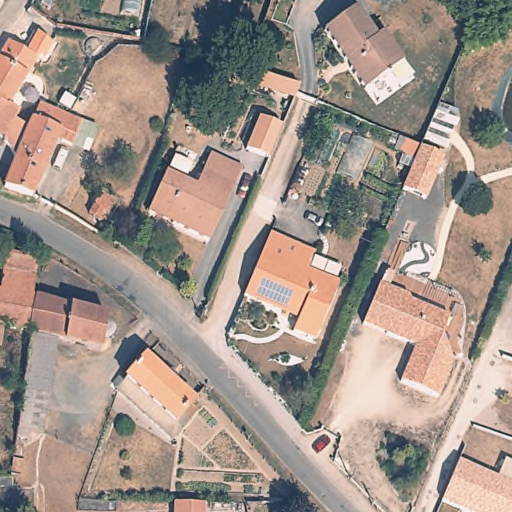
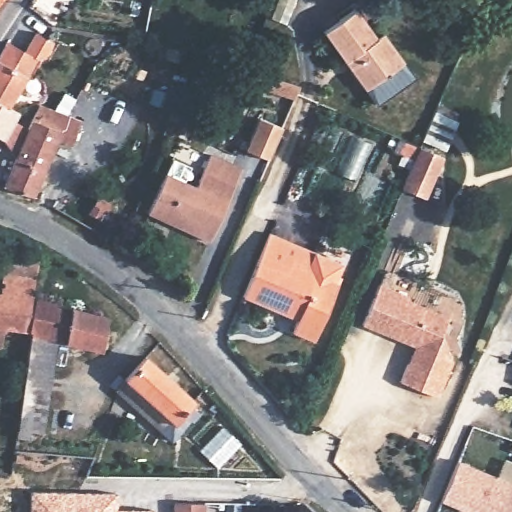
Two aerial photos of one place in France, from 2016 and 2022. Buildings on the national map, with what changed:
unchanged [(387,75),(366,91),(360,84),(322,32),(352,9),(376,38),(380,37),(382,35),(397,52),(405,63),(387,75)]
unchanged [(0,105),(0,65),(11,48),(36,63),(19,96),(11,110),(0,105)]
unchanged [(292,96),(292,97),(284,95),(247,82),(251,70),(288,83),(297,86),(292,96)]
unchanged [(11,110),(16,113),(0,143),(0,105),(11,110)]
unchanged [(56,141),(26,200),(2,189),(36,124),(46,107),(71,118),(86,125),(71,150),(56,141)]
unchanged [(21,116),(36,124),(2,189),(0,189),(0,143),(16,113),(21,116)]
unchanged [(439,158),(422,199),(398,189),(400,185),(416,148),(439,158)]
unchanged [(172,227),(174,223),(151,214),(167,178),(189,187),(197,190),(205,172),(211,157),(242,171),(236,186),(212,243),(172,227)]
unchanged [(78,223),(95,192),(108,198),(102,211),(99,210),(89,229),(78,223)]
unchanged [(308,272),(341,285),(316,344),(295,335),(304,314),(287,307),(282,314),(246,299),(272,235),(317,253),(308,272)]
unchanged [(1,254),(38,260),(32,297),(27,332),(4,330),(1,347),(0,347),(0,269),(1,254)]
unchanged [(386,280),(416,292),(414,295),(456,313),(447,331),(458,358),(444,393),(407,378),(420,351),(422,352),(424,349),(422,343),(368,319),(386,280)]
unchanged [(32,297),(107,315),(100,350),(57,340),(46,433),(17,429),(27,332),(32,297)]
unchanged [(183,401),(172,412),(128,374),(147,353),(193,389),(191,393),(197,398),(191,407),(183,401)]
unchanged [(193,409),(174,431),(118,385),(128,374),(172,412),(183,401),(191,407),(193,409)]
unchanged [(512,479),(512,486),(506,501),(501,512),(478,512),(444,498),(461,458),(512,479)]
unchanged [(512,486),(512,512),(501,512),(506,501),(512,486)]
new [(116,491),(115,508),(155,509),(155,512),(29,512),(30,489),(116,491)]
unchanged [(204,504),(204,512),(173,512),(173,505),(204,504)]

